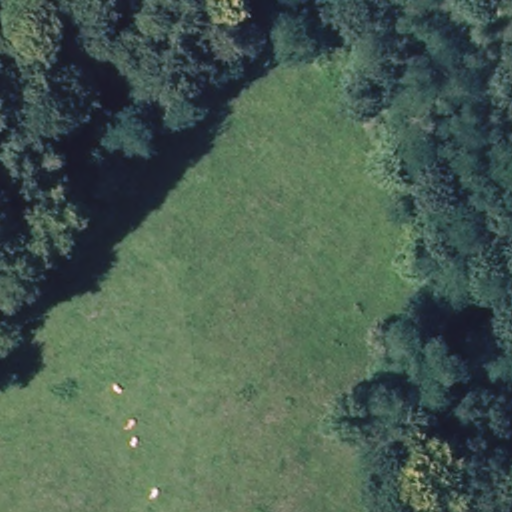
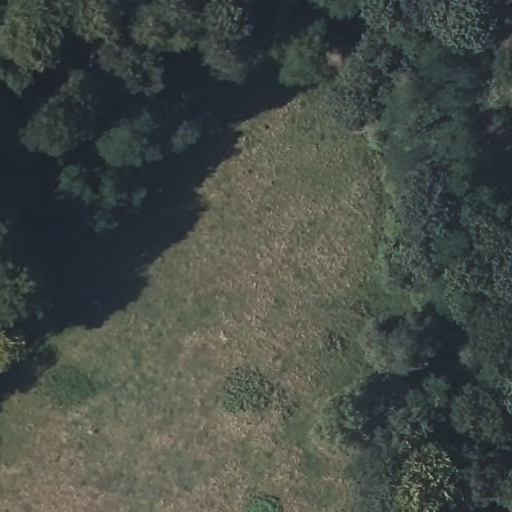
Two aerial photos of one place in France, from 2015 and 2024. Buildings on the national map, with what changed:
[]

